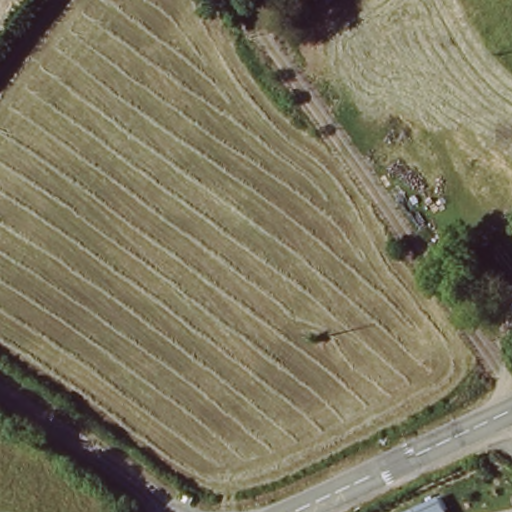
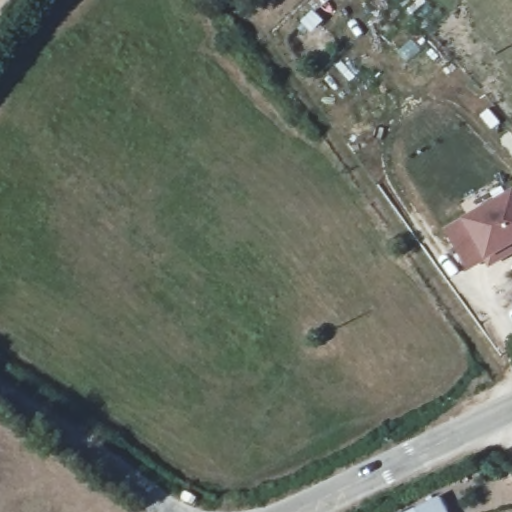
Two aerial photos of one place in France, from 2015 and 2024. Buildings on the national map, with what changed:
new [(512,244),(470,267),(448,228),(512,192),(512,244)]
unchanged [(447,512),(410,512),(440,498),(447,512)]

